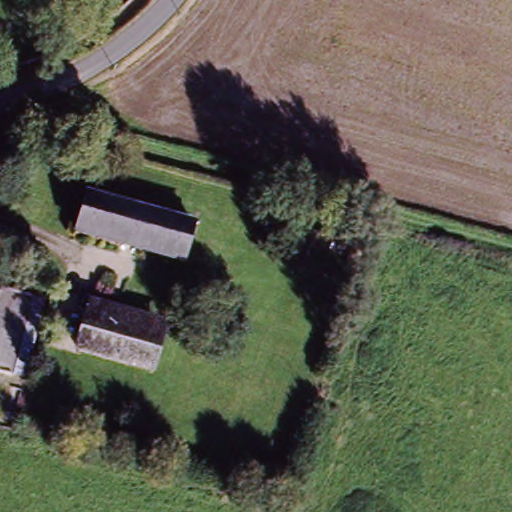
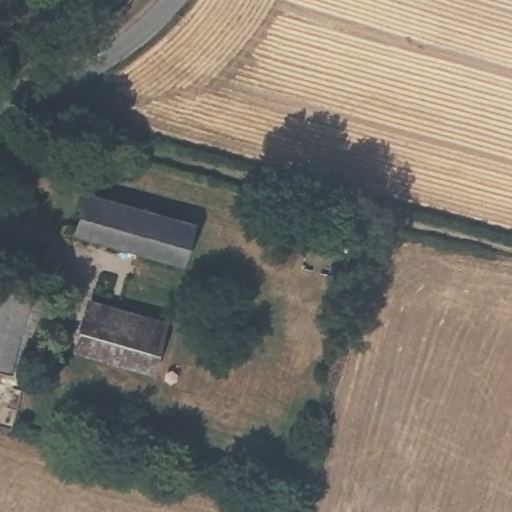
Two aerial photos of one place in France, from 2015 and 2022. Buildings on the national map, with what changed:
unchanged [(183,266),(71,232),(82,191),(165,215),(196,224),(192,237),(183,266)]
unchanged [(359,285),(320,273),(296,267),(309,230),(331,236),(370,248),(359,285)]
unchanged [(155,356),(83,325),(95,292),(168,322),(155,356)]
unchanged [(11,374),(0,371),(0,304),(3,293),(29,301),(11,374)]

